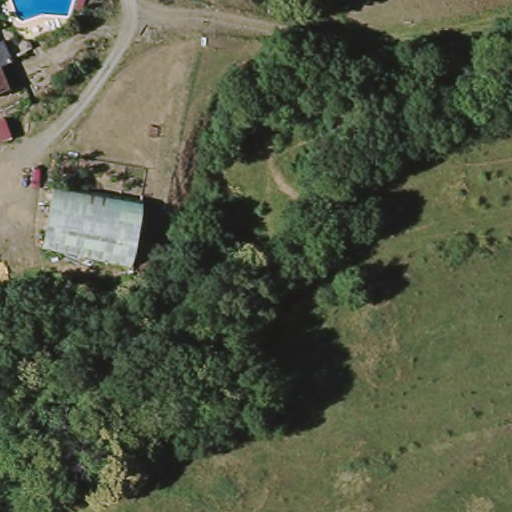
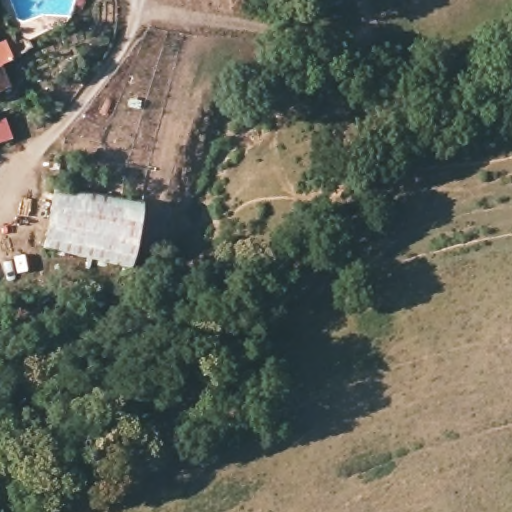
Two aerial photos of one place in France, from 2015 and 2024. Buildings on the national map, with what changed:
unchanged [(0,92),(0,43),(23,80),(0,92)]
unchanged [(4,120),(10,134),(0,138),(0,122),(4,120)]
unchanged [(56,182),(146,200),(135,262),(46,243),(56,182)]

